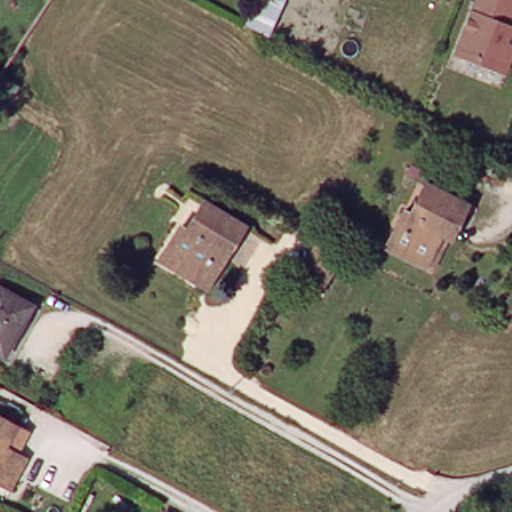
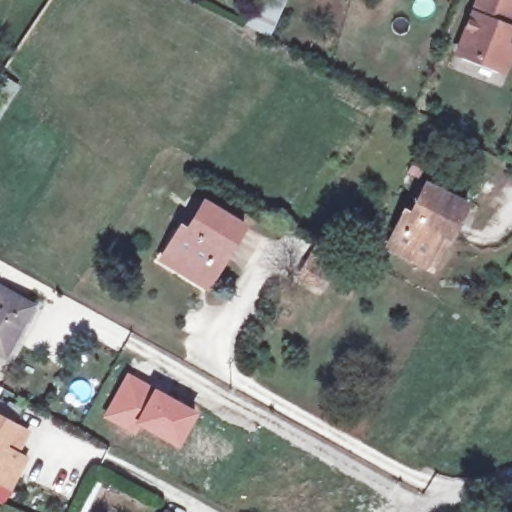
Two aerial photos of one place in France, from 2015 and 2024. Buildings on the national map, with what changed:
unchanged [(268,0),(282,0),(289,3),(272,38),(253,29),(268,0)]
unchanged [(510,28),(512,29),(512,59),(507,70),(462,52),(482,0),(512,0),(512,23),(510,28)]
unchanged [(427,259),(389,239),(406,207),(411,209),(427,180),(467,201),(452,229),(435,263),(427,259)]
unchanged [(202,283),(165,260),(184,228),(190,232),(205,205),(245,230),(229,257),(210,288),(202,283)]
unchanged [(38,308),(8,355),(0,350),(0,290),(2,286),(38,308)]
new [(126,371),(197,410),(177,448),(140,427),(135,435),(102,416),(126,371)]
unchanged [(0,421),(26,435),(15,455),(25,460),(14,479),(8,490),(0,486),(0,421)]

